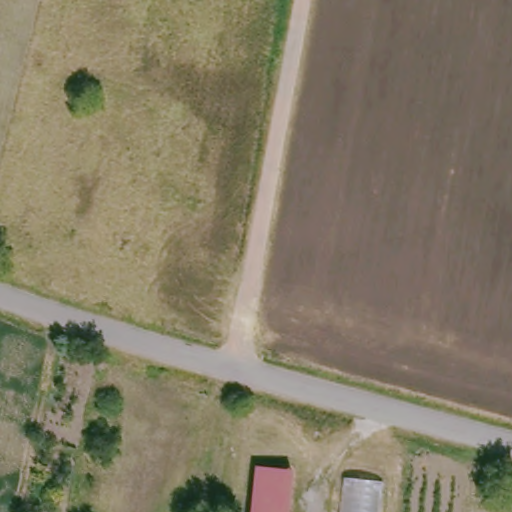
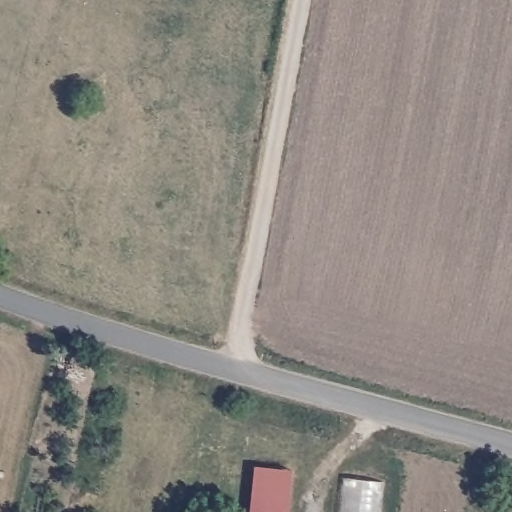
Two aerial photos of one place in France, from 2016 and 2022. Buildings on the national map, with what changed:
unchanged [(274,467),(291,468),(286,512),(248,512),(253,466),(274,467)]
unchanged [(353,475),(383,477),(379,512),(343,512),(348,474),(353,475)]

